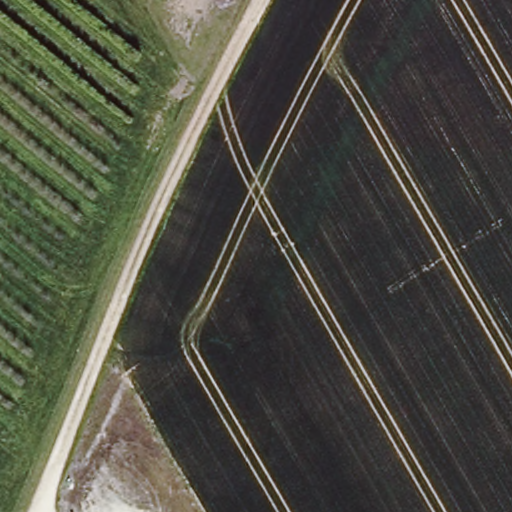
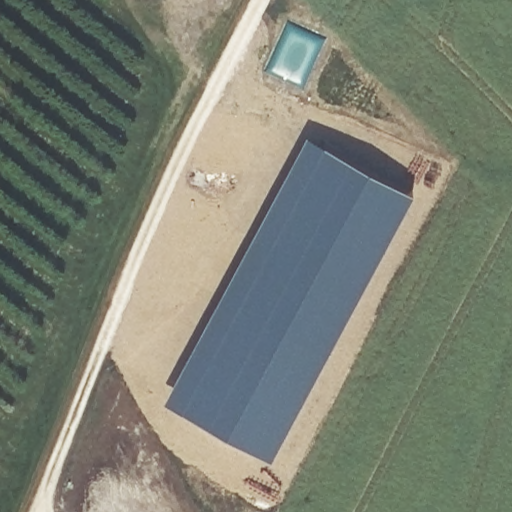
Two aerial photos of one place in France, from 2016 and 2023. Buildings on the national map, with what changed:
new [(305,135),(413,190),(270,454),(166,398),(305,135)]

